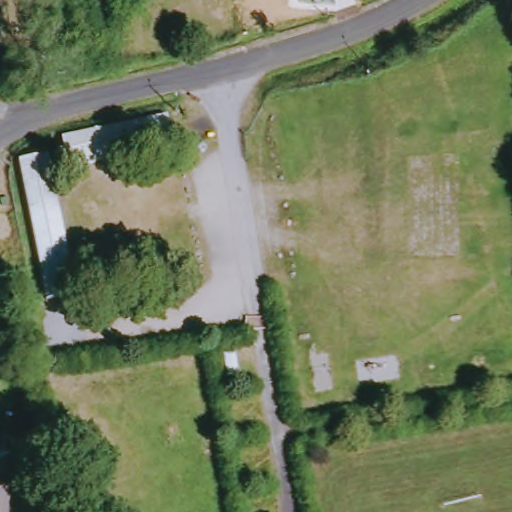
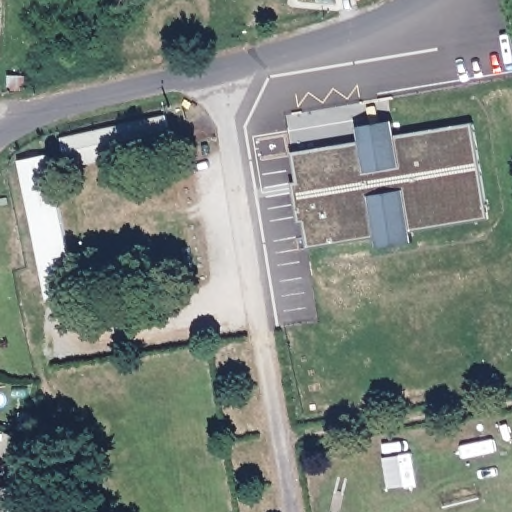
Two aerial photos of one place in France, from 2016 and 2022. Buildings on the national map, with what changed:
unchanged [(175,114),(182,146),(75,166),(71,135),(175,114)]
new [(359,142),(356,127),(393,120),(396,135),(472,124),(487,219),(411,230),(412,240),(377,247),(377,236),(308,248),(305,222),(299,223),(292,182),(297,182),(293,152),(359,142)]
unchanged [(58,154),(82,294),(52,299),(26,160),(58,154)]
unchanged [(0,185),(0,182),(2,185),(0,185)]
unchanged [(0,470),(0,433),(3,433),(0,470)]
unchanged [(0,512),(0,486),(13,487),(10,512),(0,512)]

